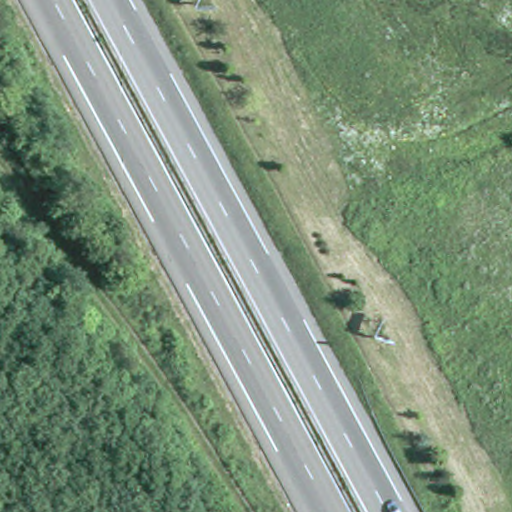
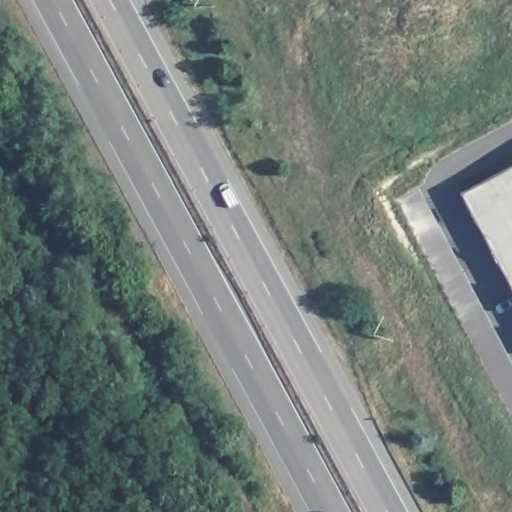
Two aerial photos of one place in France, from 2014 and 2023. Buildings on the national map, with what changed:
new [(461,195),(512,167),(512,288),(461,195)]

